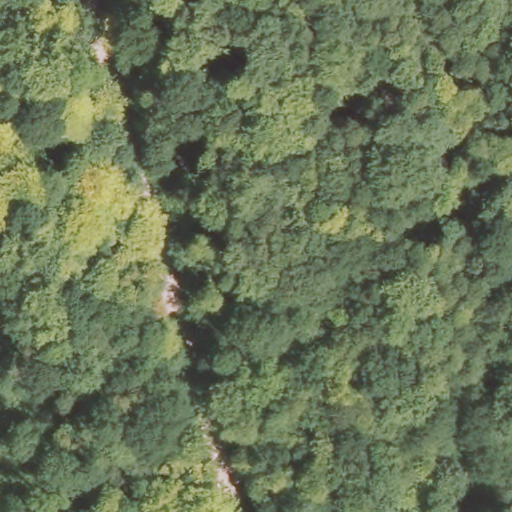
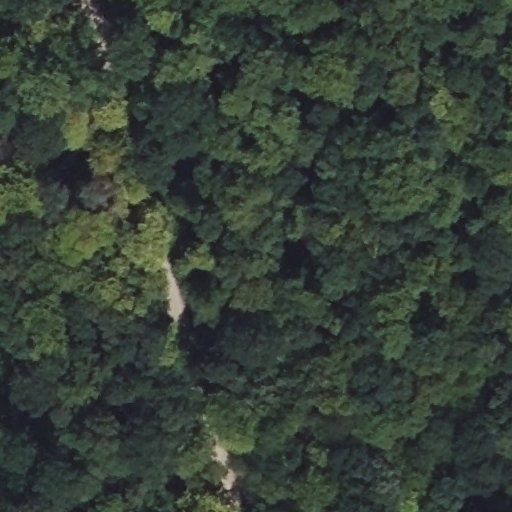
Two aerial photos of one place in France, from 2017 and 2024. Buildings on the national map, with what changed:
unchanged [(386,241),(416,226),(431,251),(406,266),(386,241)]

